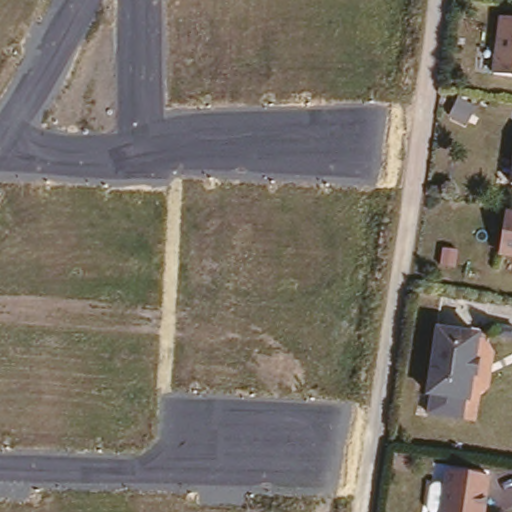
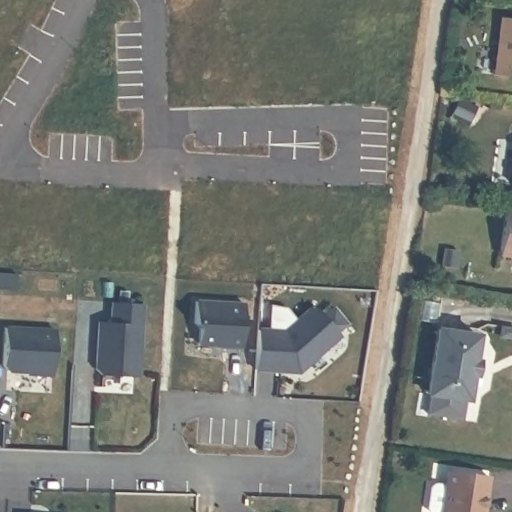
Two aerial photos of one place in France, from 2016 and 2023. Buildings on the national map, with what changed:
unchanged [(512,18),(512,76),(495,75),(501,17),(512,18)]
unchanged [(512,166),(512,186),(509,186),(512,166)]
unchanged [(512,210),(512,252),(500,250),(508,209),(512,210)]
new [(236,292),(235,339),(218,338),(219,335),(191,334),(192,318),(187,313),(187,291),(236,292)]
new [(134,368),(96,367),(91,361),(92,313),(105,314),(105,294),(135,295),(134,368)]
new [(255,374),(257,334),(284,335),(310,311),(316,312),(340,338),(308,368),(299,376),(255,374)]
new [(27,368),(27,365),(1,365),(0,364),(0,322),(48,324),(46,369),(27,368)]
unchanged [(478,380),(472,379),(468,404),(426,400),(437,335),(479,340),(474,365),(480,365),(478,380)]
unchanged [(493,475),(486,512),(444,512),(452,470),(493,475)]
new [(269,510),(299,510),(299,512),(269,512),(269,510)]

